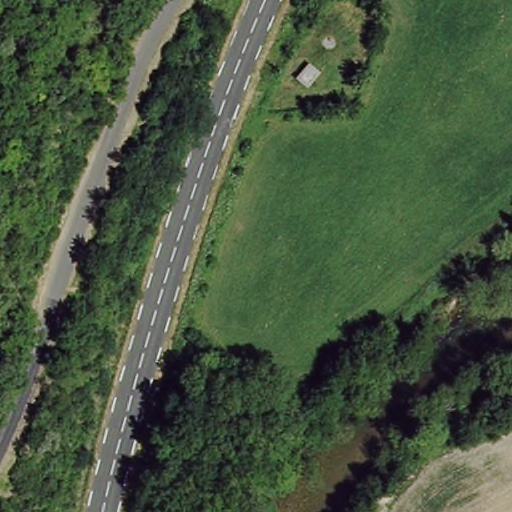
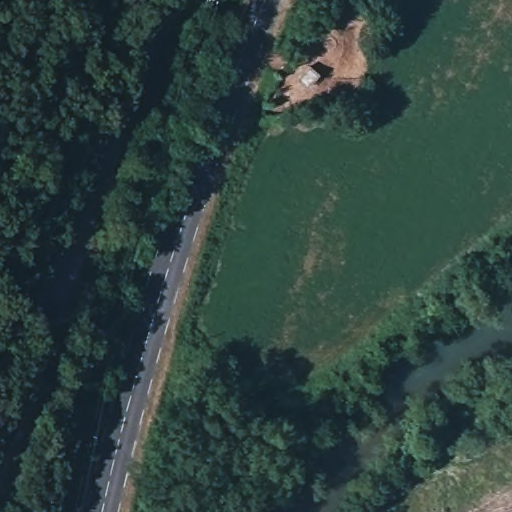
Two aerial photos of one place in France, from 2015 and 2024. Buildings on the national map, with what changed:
unchanged [(342,39),(342,40),(342,41),(342,42),(341,42),(341,43),(341,44),(340,45),(340,46),(340,47),(339,47),(339,48),(338,48),(338,49),(337,49),(336,50),(335,50),(335,51),(334,51),(333,51),(333,52),(332,52),(331,52),(330,52),(329,52),(328,52),(328,53),(328,52),(327,53),(327,52),(326,52),(325,52),(324,52),(323,52),(322,51),(321,51),(320,51),(320,50),(319,49),(318,49),(318,48),(317,48),(317,47),(316,47),(316,46),(316,45),(315,44),(315,43),(315,42),(315,41),(315,40),(315,38),(315,37),(315,36),(315,35),(315,34),(316,34),(316,33),(316,32),(317,32),(317,31),(318,30),(318,29),(319,29),(320,29),(320,28),(321,28),(321,27),(322,27),(323,26),(324,26),(325,26),(325,25),(326,25),(327,25),(328,25),(329,25),(330,25),(331,25),(332,25),(332,26),(333,26),(334,26),(335,26),(335,27),(336,27),(337,28),(338,28),(338,29),(339,29),(340,30),(340,31),(340,32),(341,32),(341,33),(341,34),(342,34),(342,35),(342,36),(342,37),(342,38),(342,39)]

